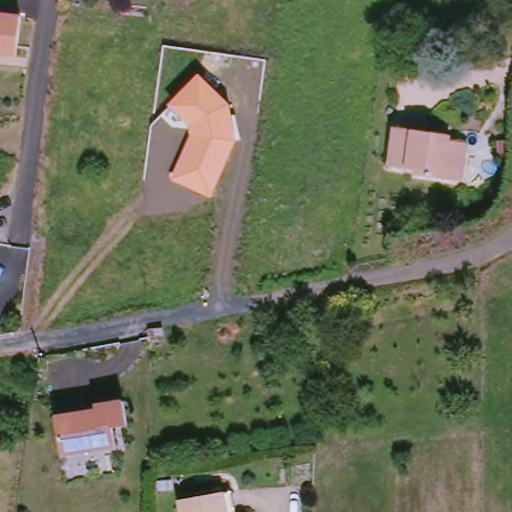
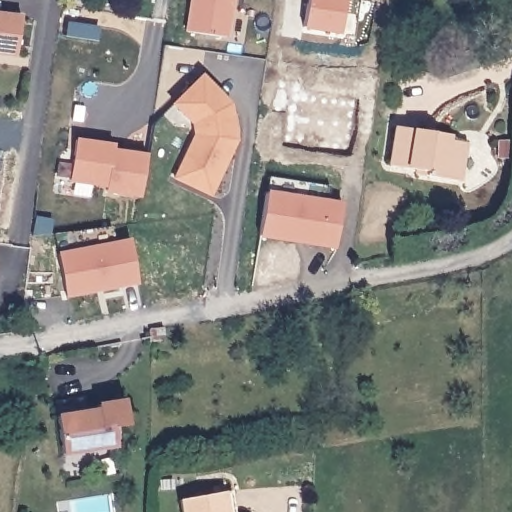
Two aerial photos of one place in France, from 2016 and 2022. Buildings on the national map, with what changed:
new [(229,37),(184,31),(188,0),(234,0),(229,37)]
new [(309,0),(347,0),(342,35),(305,30),(309,0)]
unchanged [(17,56),(0,54),(0,13),(22,16),(17,56)]
unchanged [(230,105),(237,142),(210,197),(170,180),(190,137),(190,125),(169,105),(200,75),(230,105)]
unchanged [(422,174),(395,170),(400,131),(454,140),(454,145),(472,147),(466,185),(432,180),(422,179),(422,174)]
new [(107,186),(70,181),(77,138),(115,144),(115,149),(147,153),(142,198),(107,192),(107,186)]
new [(342,202),(337,249),(260,237),(267,191),(342,202)]
new [(66,298),(57,252),(129,239),(137,285),(66,298)]
unchanged [(163,329),(164,338),(152,340),(150,330),(163,329)]
unchanged [(84,401),(87,421),(99,419),(97,410),(125,405),(129,430),(114,431),(117,450),(63,459),(55,406),(84,401)]
unchanged [(217,497),(225,496),(228,512),(182,512),(180,504),(217,497)]

